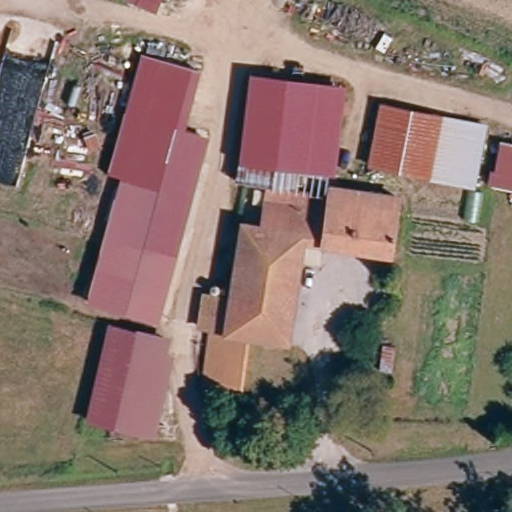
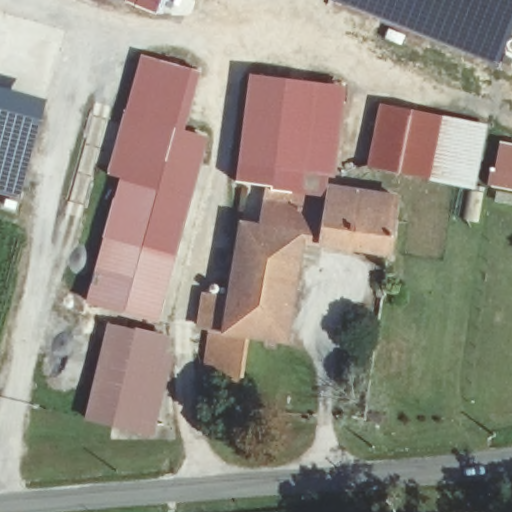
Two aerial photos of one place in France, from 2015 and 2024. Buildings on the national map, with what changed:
unchanged [(129,0),(161,0),(157,12),(129,0)]
new [(406,31),(401,45),(384,39),(390,24),(330,0),(512,0),(512,30),(497,65),(406,31)]
unchanged [(140,55),(200,73),(184,130),(172,127),(121,119),(140,55)]
unchanged [(350,89),(349,122),(333,120),(329,170),(296,169),(296,187),(275,185),(274,190),(252,188),(246,187),(252,82),(272,84),(350,89)]
new [(0,87),(47,100),(22,199),(0,192),(0,87)]
unchanged [(473,181),(377,172),(380,110),(419,114),(479,119),(477,135),(473,181)]
unchanged [(172,127),(198,132),(162,320),(128,313),(101,308),(125,183),(110,180),(121,119),(172,127)]
unchanged [(500,140),(512,143),(512,187),(492,185),(500,140)]
unchanged [(214,351),(215,332),(206,331),(206,325),(207,301),(235,305),(247,219),(269,222),(274,190),(275,185),(296,187),(333,191),(334,183),(402,191),(393,250),(304,240),(292,340),(253,337),(247,389),(232,387),(211,385),(214,351)]
unchanged [(115,328),(137,335),(166,342),(144,422),(141,435),(112,428),(92,422),(93,419),(115,328)]

